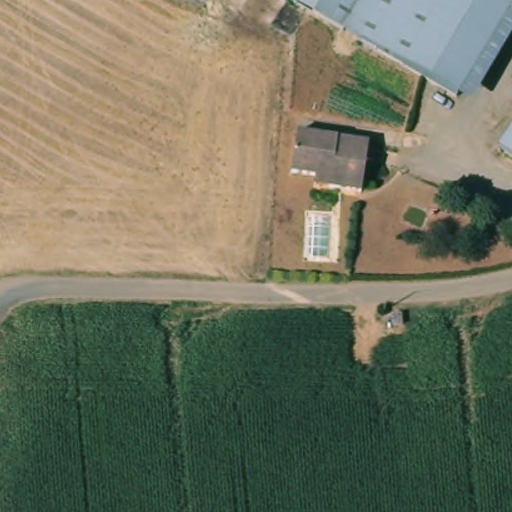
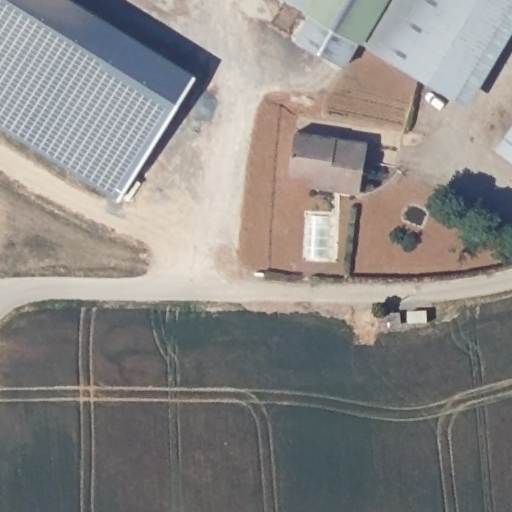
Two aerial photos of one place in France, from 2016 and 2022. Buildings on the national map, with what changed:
new [(198,72),(120,198),(0,123),(0,0),(82,0),(198,72)]
unchanged [(316,15),(288,0),(324,0),(316,15)]
unchanged [(512,39),(472,108),(316,15),(324,0),(512,0),(512,39)]
unchanged [(318,177),(292,175),(298,134),(370,144),(362,195),(334,191),(316,188),(318,177)]
unchanged [(512,143),(512,158),(505,153),(512,143)]

